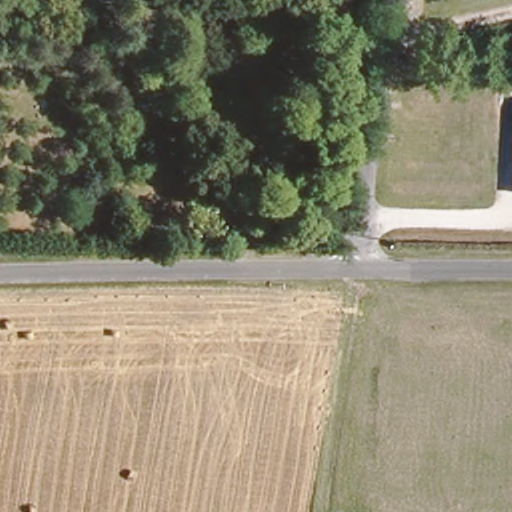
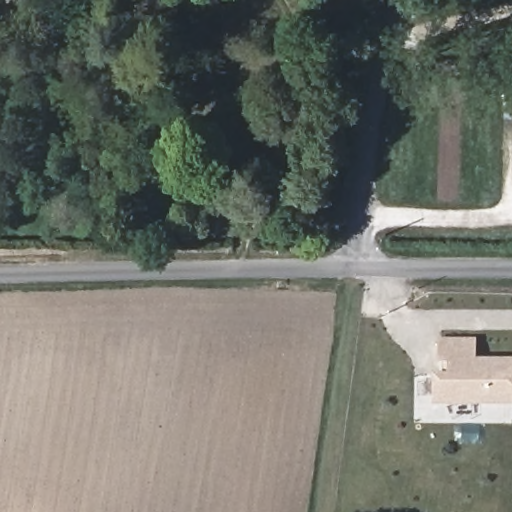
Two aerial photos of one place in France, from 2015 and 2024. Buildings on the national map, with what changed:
new [(445,374),(445,361),(434,361),(434,340),(469,340),(470,358),(510,359),(512,387),(512,401),(431,402),(430,375),(445,374)]

